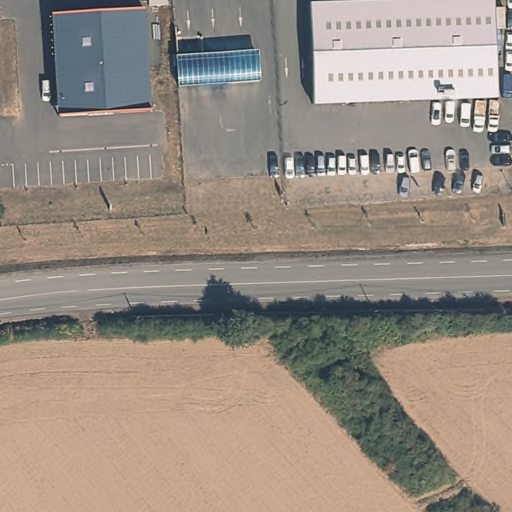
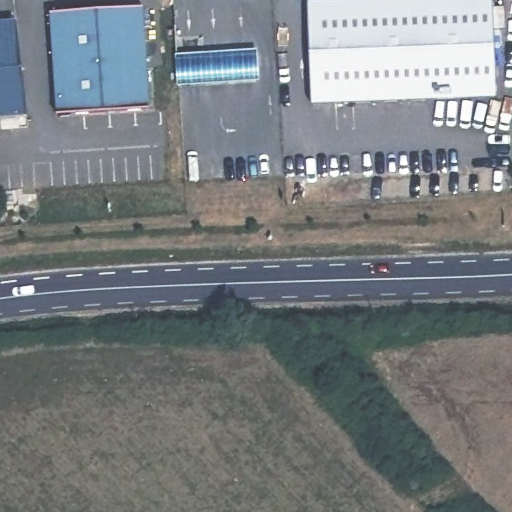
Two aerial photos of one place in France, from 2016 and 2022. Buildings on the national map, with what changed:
unchanged [(307,4),(447,0),(493,0),(497,99),(312,105),(307,4)]
unchanged [(146,9),(151,115),(57,121),(51,15),(51,14),(146,9)]
new [(29,119),(0,120),(0,24),(19,23),(29,119)]
unchanged [(259,83),(179,88),(176,55),(257,50),(259,83)]

